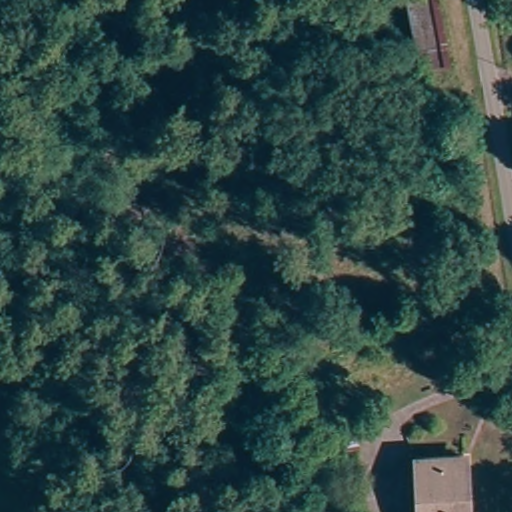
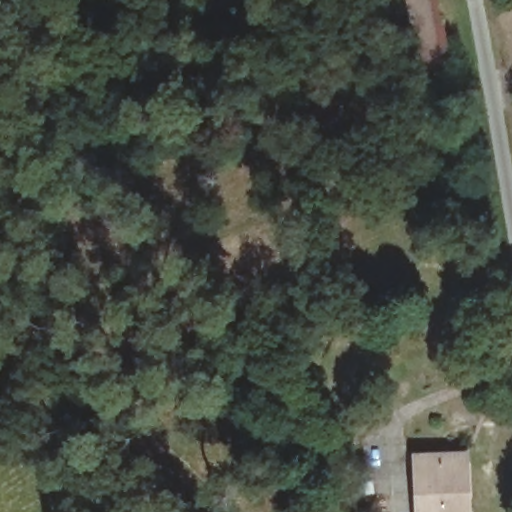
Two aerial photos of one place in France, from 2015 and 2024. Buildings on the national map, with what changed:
unchanged [(414,70),(398,0),(438,0),(452,65),(414,70)]
unchanged [(415,451),(459,450),(461,512),(415,512),(415,451)]

